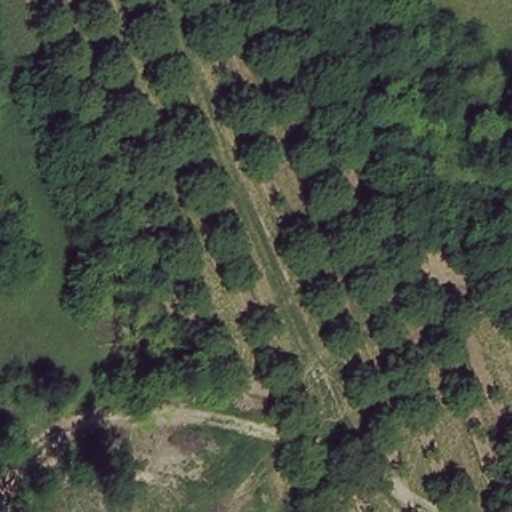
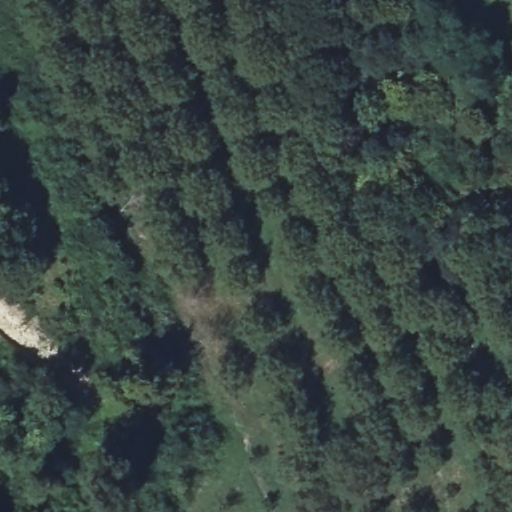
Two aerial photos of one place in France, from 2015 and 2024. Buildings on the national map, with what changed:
[]

